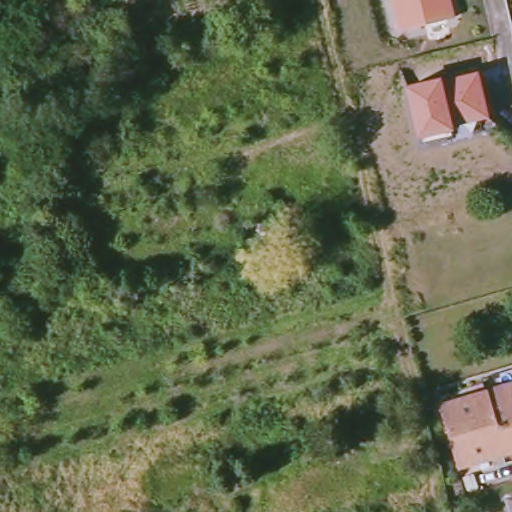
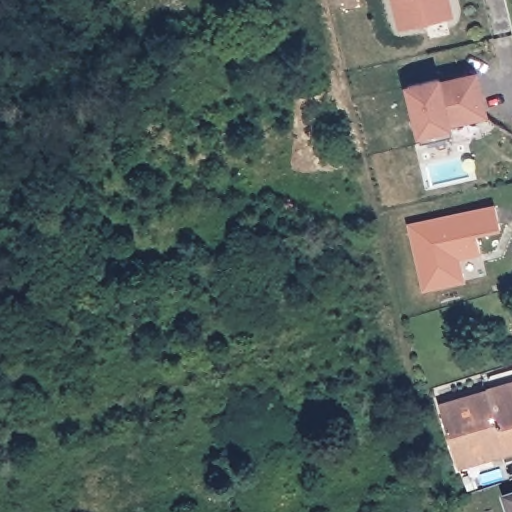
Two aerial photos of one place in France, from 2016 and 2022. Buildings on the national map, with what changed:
unchanged [(458,19),(400,32),(392,0),(453,0),(458,19)]
unchanged [(452,123),(454,129),(420,137),(409,84),(440,77),(480,71),(490,117),(452,123)]
new [(502,231),(477,236),(481,254),(461,258),(466,282),(422,292),(407,222),(495,204),(502,231)]
unchanged [(441,405),(489,391),(512,384),(512,452),(507,453),(495,457),(460,467),(441,405)]
unchanged [(512,497),(512,510),(508,498),(512,497)]

